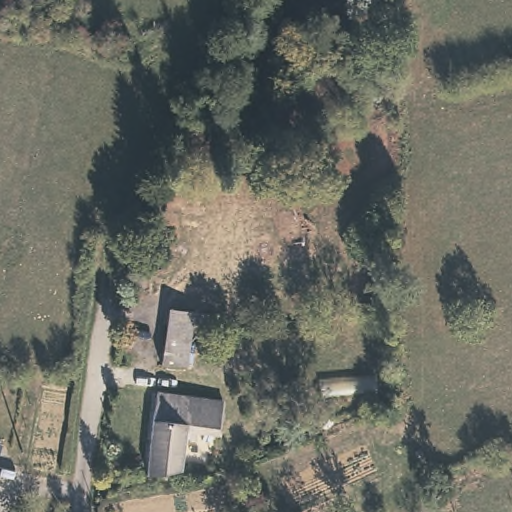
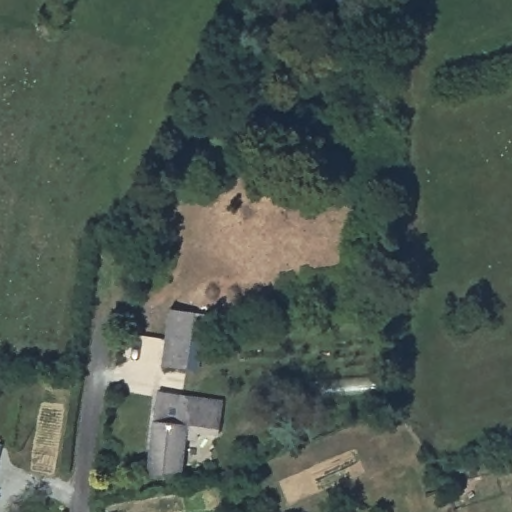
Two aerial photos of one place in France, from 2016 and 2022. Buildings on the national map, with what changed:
unchanged [(161,366),(165,338),(168,310),(207,314),(204,339),(204,341),(192,340),(190,369),(161,366)]
unchanged [(220,395),(215,431),(183,428),(179,465),(145,469),(156,387),(220,395)]

